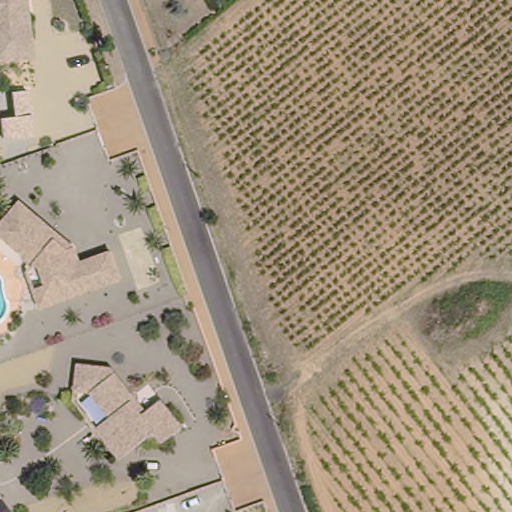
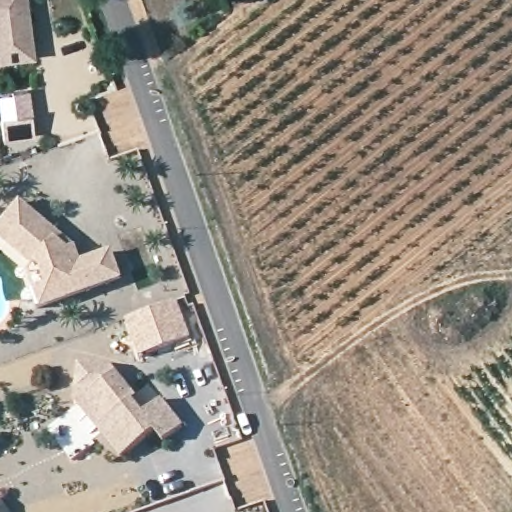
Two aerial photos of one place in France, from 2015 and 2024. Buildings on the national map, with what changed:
unchanged [(0,61),(0,0),(23,0),(27,59),(0,61)]
new [(16,124),(13,100),(28,98),(35,142),(5,146),(2,126),(16,124)]
unchanged [(79,262),(110,250),(120,277),(47,304),(40,285),(46,283),(40,268),(36,265),(34,267),(0,241),(0,225),(16,204),(73,247),(79,262)]
new [(176,300),(191,337),(137,357),(124,320),(176,300)]
unchanged [(180,426),(161,442),(152,431),(119,458),(95,428),(109,417),(89,392),(73,391),(75,365),(108,369),(133,399),(143,411),(158,400),(180,426)]

